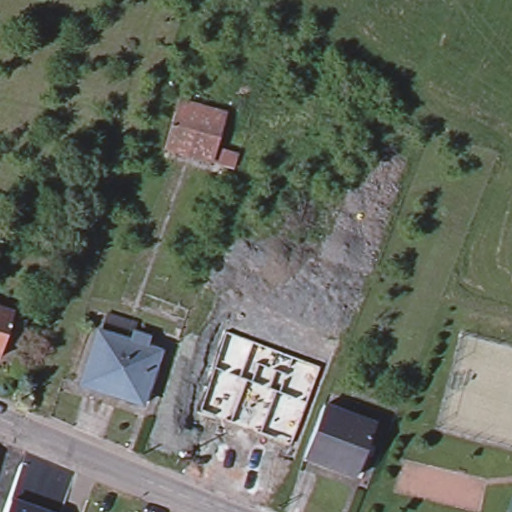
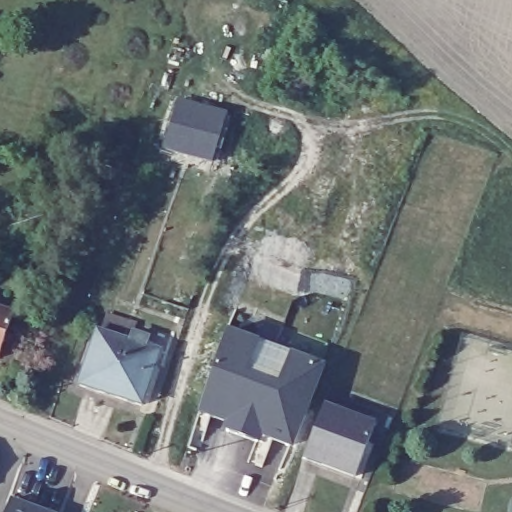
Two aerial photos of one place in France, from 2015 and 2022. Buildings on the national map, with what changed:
unchanged [(178,100),(226,111),(218,143),(243,151),(238,171),(163,151),(178,100)]
unchanged [(13,311),(0,349),(0,306),(13,311)]
new [(228,327),(326,365),(294,450),(263,438),(261,445),(223,432),(226,424),(197,415),(228,327)]
unchanged [(131,339),(133,330),(148,335),(144,344),(160,349),(142,403),(93,387),(79,382),(97,328),(110,332),(110,333),(131,339)]
unchanged [(329,408),(378,427),(359,477),(309,460),(329,408)]
new [(49,512),(5,512),(11,498),(49,512)]

